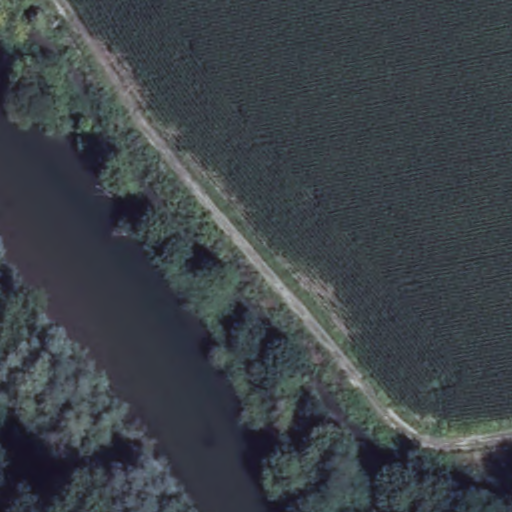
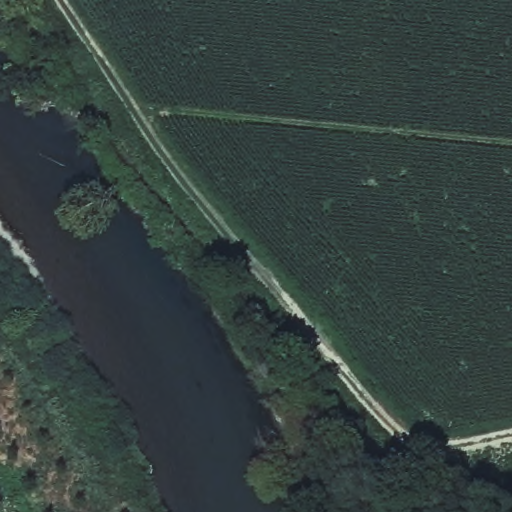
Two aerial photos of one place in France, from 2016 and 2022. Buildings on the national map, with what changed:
[]

